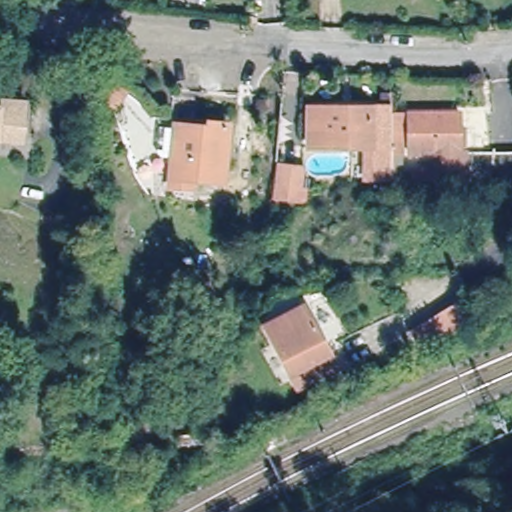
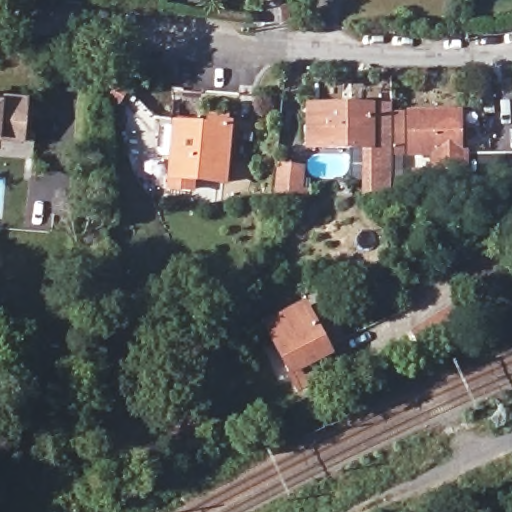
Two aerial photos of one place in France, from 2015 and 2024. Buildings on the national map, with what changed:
unchanged [(29,106),(27,137),(20,136),(20,145),(0,144),(0,104),(29,106)]
unchanged [(370,178),(370,148),(309,148),(309,108),(372,108),(391,108),(391,113),(391,178),(370,178)]
unchanged [(404,154),(392,154),(392,113),(404,113),(404,154)]
unchanged [(433,191),(415,191),(415,170),(432,170),(432,154),(409,154),(409,113),(460,113),(460,153),(512,153),(512,185),(433,185),(433,191)]
unchanged [(218,192),(167,187),(169,166),(148,164),(151,134),(172,136),(172,131),(203,134),(223,136),(218,192)]
unchanged [(302,163),(300,184),(307,185),(306,195),(299,195),(277,193),(280,161),(302,163)]
unchanged [(412,333),(427,324),(425,321),(462,299),(476,321),(439,343),(424,352),(412,333)]
unchanged [(297,387),(266,328),(304,308),(316,331),(327,353),(322,356),(329,370),(297,387)]

